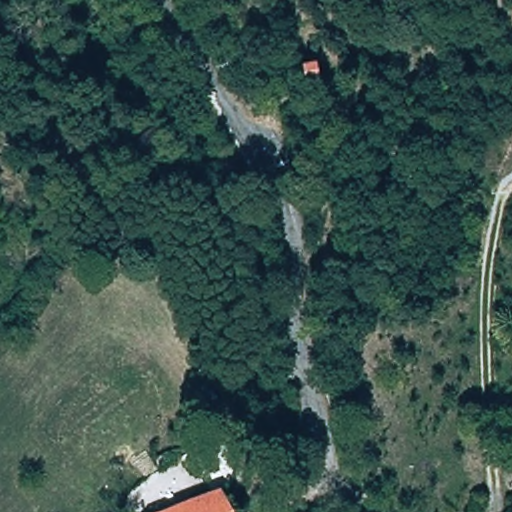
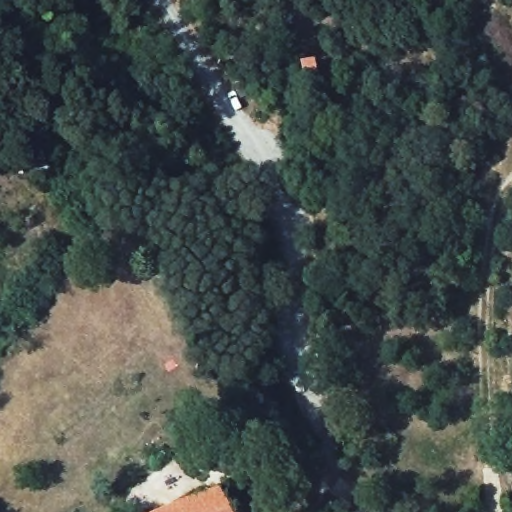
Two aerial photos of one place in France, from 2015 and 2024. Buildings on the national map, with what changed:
unchanged [(158,512),(217,486),(220,484),(231,512),(158,512)]

